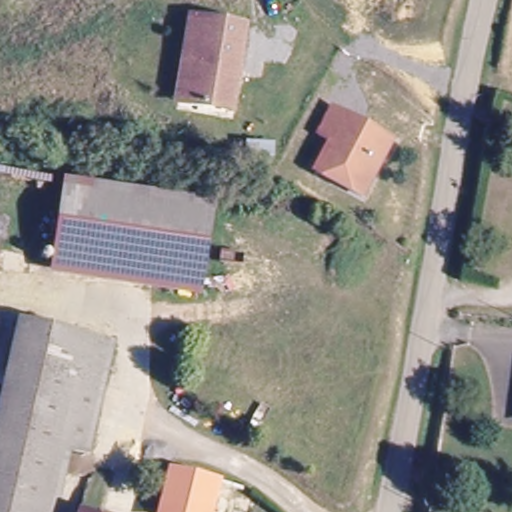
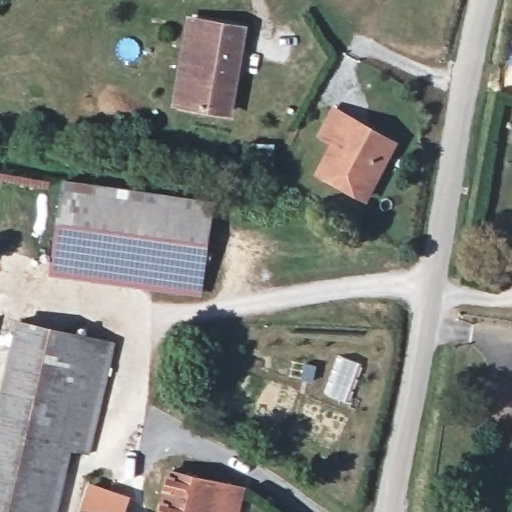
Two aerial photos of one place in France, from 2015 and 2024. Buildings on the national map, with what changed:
unchanged [(191,19),(241,28),(227,111),(187,105),(175,101),(184,59),(191,19)]
unchanged [(365,191),(315,164),(327,139),(317,131),(306,125),(322,92),(332,100),(395,132),(365,191)]
unchanged [(57,197),(60,175),(132,189),(174,192),(207,197),(206,206),(204,232),(90,204),(57,197)]
unchanged [(47,271),(57,197),(90,204),(72,274),(47,271)]
unchanged [(196,290),(72,274),(90,204),(204,232),(196,290)]
unchanged [(82,452),(67,448),(50,512),(0,512),(0,363),(11,317),(57,327),(107,339),(82,452)]
unchanged [(246,485),(244,502),(211,496),(207,512),(153,512),(159,485),(163,468),(246,485)]
unchanged [(244,502),(242,512),(207,512),(211,496),(244,502)]
unchanged [(81,512),(71,512),(72,509),(81,512)]

